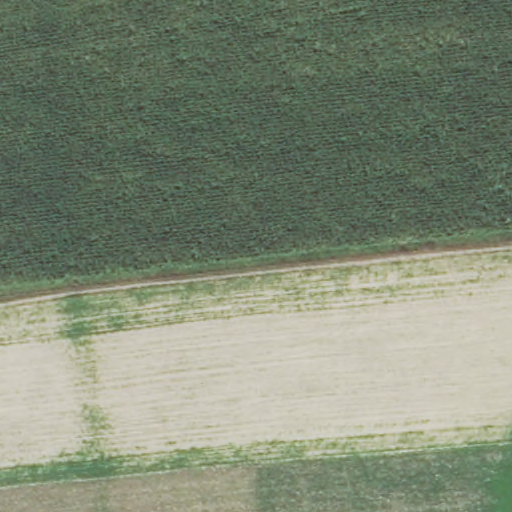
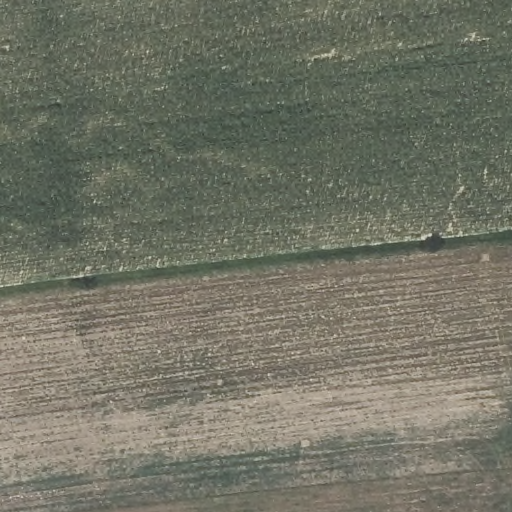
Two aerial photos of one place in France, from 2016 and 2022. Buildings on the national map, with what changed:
[]

